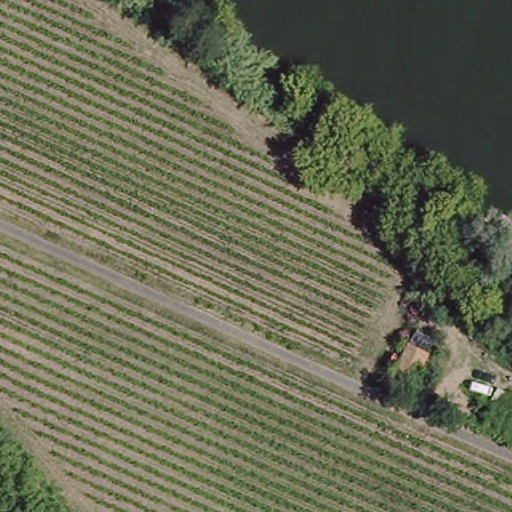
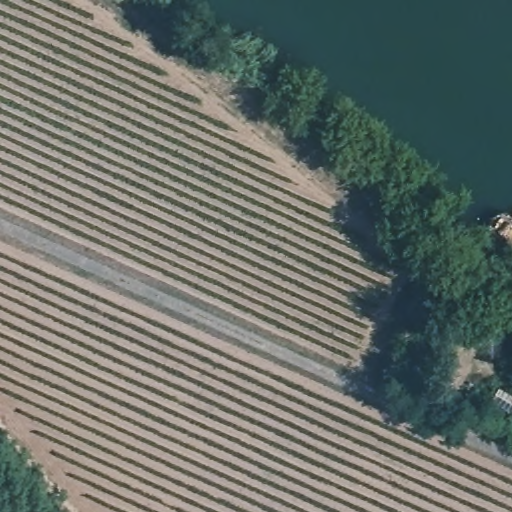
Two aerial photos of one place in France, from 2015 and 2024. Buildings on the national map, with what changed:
unchanged [(419,354),(406,380),(391,372),(404,346),(419,354)]

